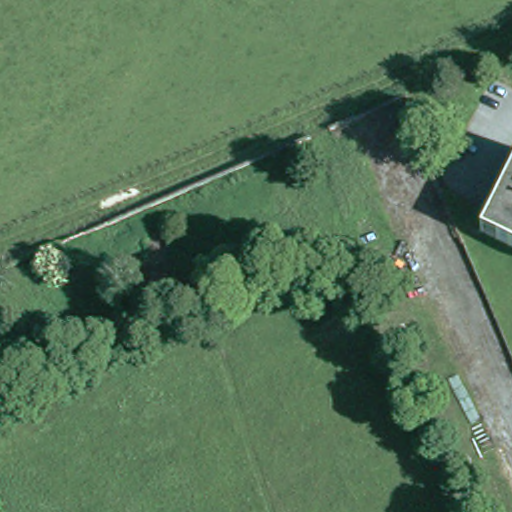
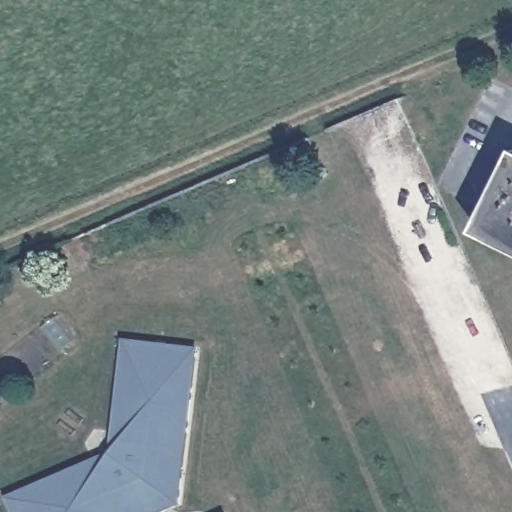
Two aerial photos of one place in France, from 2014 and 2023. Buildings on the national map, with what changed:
unchanged [(512,172),(512,244),(484,230),(512,172)]
new [(6,495),(111,452),(125,338),(197,347),(180,503),(157,512),(13,512),(6,495)]

